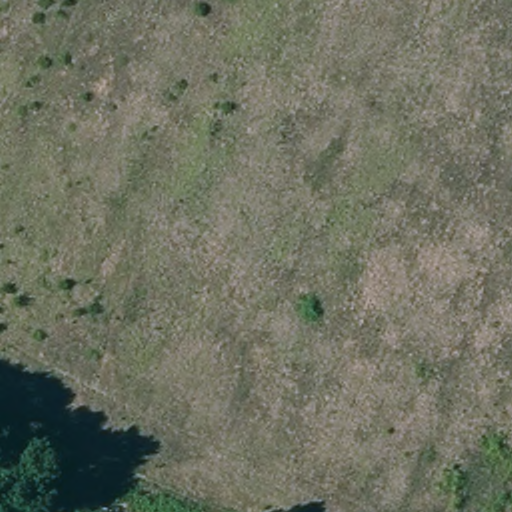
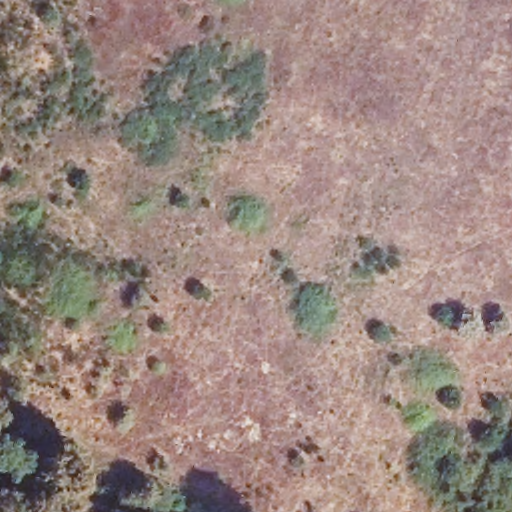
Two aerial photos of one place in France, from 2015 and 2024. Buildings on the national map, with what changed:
[]

